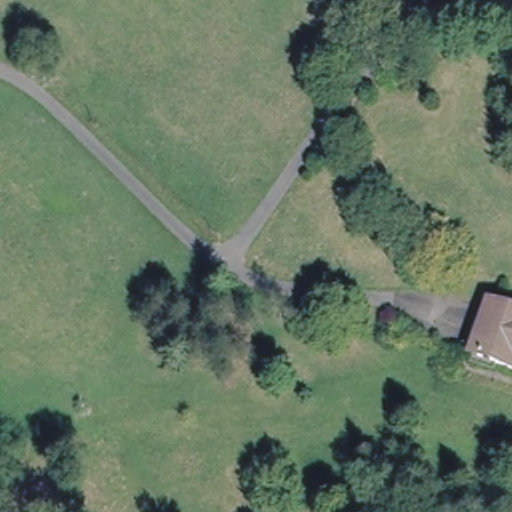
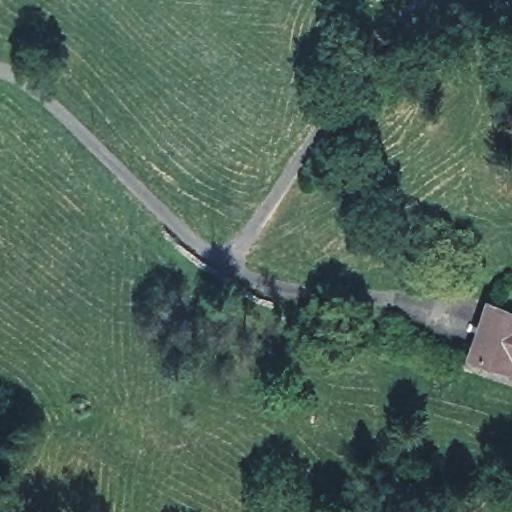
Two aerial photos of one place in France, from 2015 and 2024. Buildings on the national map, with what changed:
unchanged [(482,360),(470,356),(488,301),(500,305),(512,310),(512,370),(482,360)]

